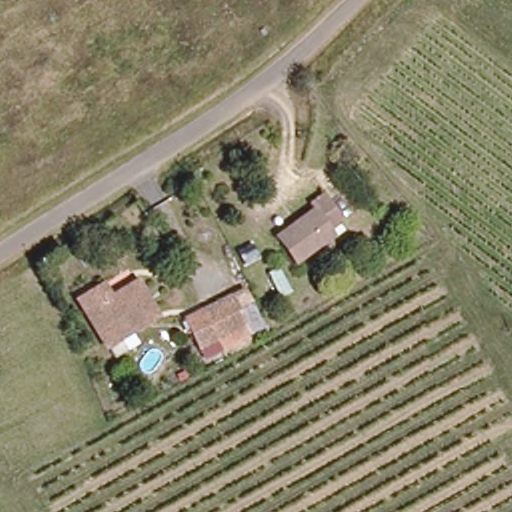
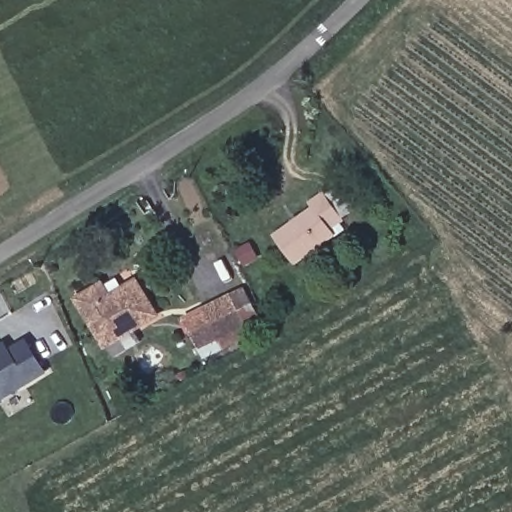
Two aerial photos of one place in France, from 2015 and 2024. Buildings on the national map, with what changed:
unchanged [(291,267),(270,238),(308,212),(304,204),(319,196),(337,225),(323,234),(327,240),(291,267)]
unchanged [(108,363),(97,345),(73,295),(91,285),(98,299),(131,283),(150,319),(128,330),(136,347),(108,363)]
unchanged [(216,334),(197,343),(183,310),(226,291),(240,284),(265,336),(251,343),(246,334),(223,346),(216,334)]
new [(48,374),(0,402),(0,346),(7,342),(10,348),(27,339),(48,374)]

